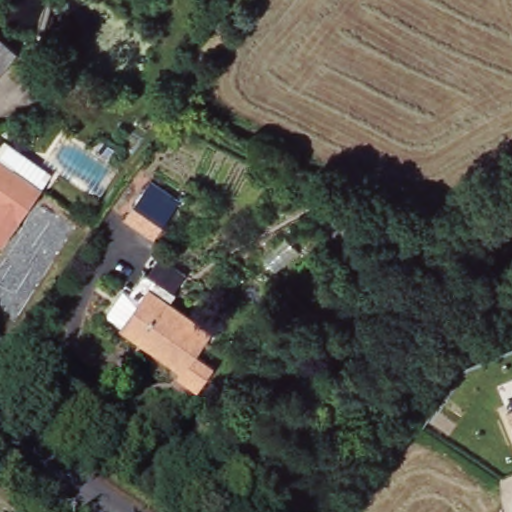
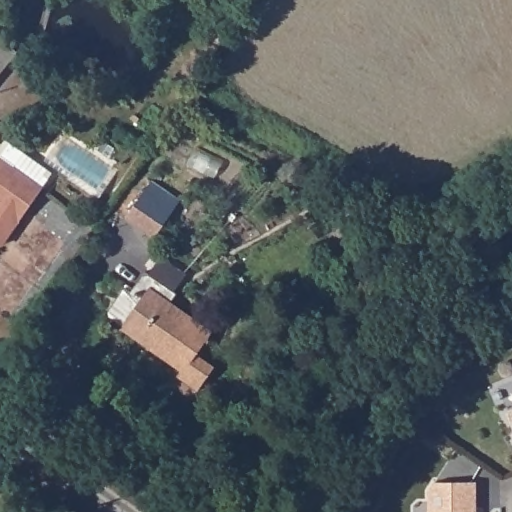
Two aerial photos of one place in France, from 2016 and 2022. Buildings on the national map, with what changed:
unchanged [(0,73),(0,40),(15,54),(0,73)]
unchanged [(51,175),(0,244),(0,147),(5,141),(51,175)]
unchanged [(125,220),(142,196),(148,189),(176,209),(170,216),(153,240),(125,220)]
unchanged [(127,321),(143,299),(133,292),(148,270),(151,272),(167,251),(191,268),(177,291),(179,292),(172,302),(213,332),(197,354),(215,367),(198,389),(181,376),(185,371),(156,350),(124,326),(127,321)]
unchanged [(507,408),(512,406),(512,420),(507,408)]
new [(428,480),(469,478),(470,512),(423,512),(423,488),(428,480)]

